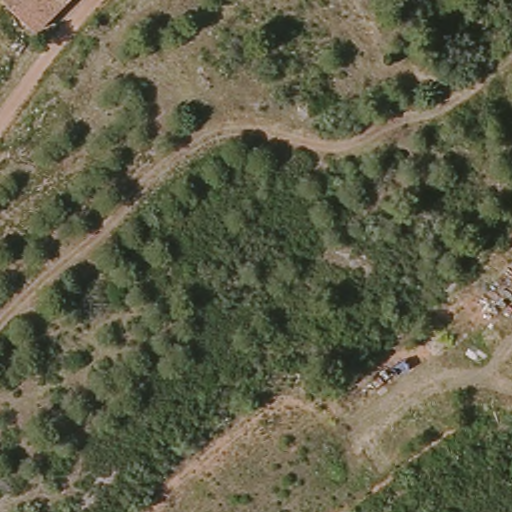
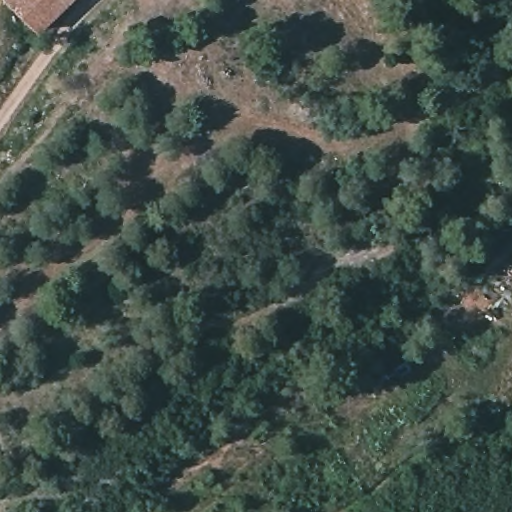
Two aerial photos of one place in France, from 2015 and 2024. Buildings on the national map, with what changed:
unchanged [(11,0),(61,0),(34,26),(11,0)]

